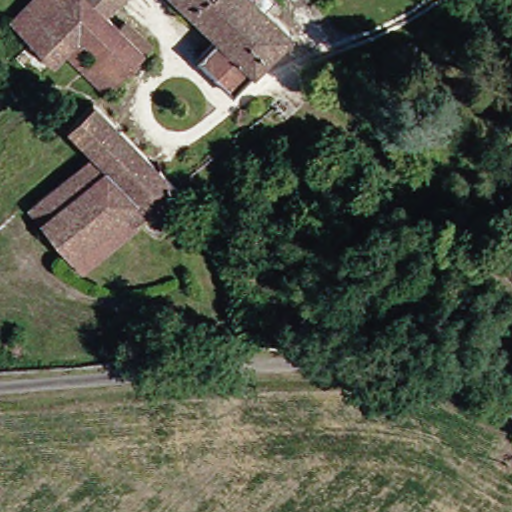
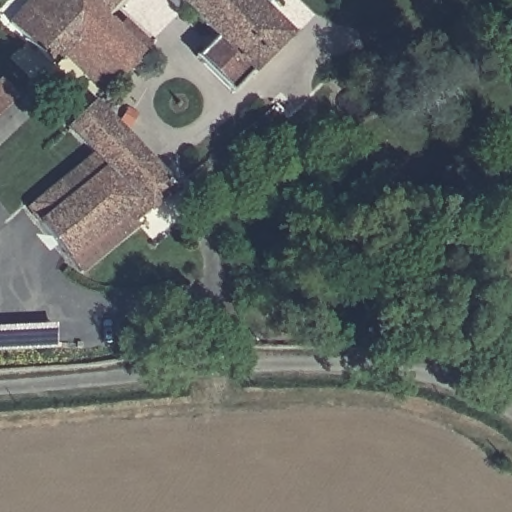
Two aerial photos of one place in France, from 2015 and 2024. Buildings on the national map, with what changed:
unchanged [(148,44),(141,52),(103,93),(59,52),(49,64),(29,46),(25,43),(5,24),(28,0),(84,0),(99,14),(114,28),(121,20),(148,44)]
unchanged [(99,14),(84,0),(112,0),(99,14)]
unchanged [(258,7),(286,34),(249,73),(248,72),(228,93),(191,58),(212,37),(173,0),(265,0),(258,7)]
new [(0,116),(0,79),(1,78),(19,99),(0,116)]
unchanged [(54,177),(89,149),(63,123),(89,97),(173,184),(131,218),(134,221),(76,268),(35,218),(23,203),(54,177)]
new [(0,327),(56,324),(58,348),(0,351),(0,327)]

